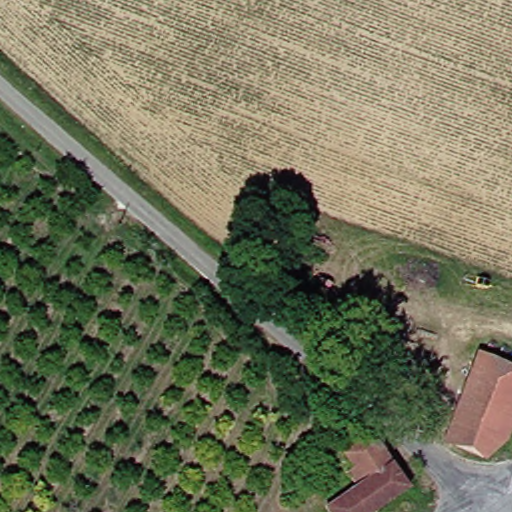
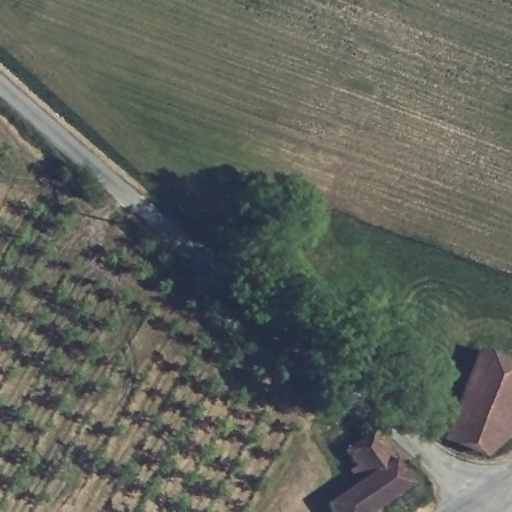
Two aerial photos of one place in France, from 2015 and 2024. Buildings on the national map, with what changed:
unchanged [(462,426),(458,438),(443,432),(458,390),(474,398),(491,350),(512,360),(512,446),(462,426)]
unchanged [(507,464),(456,447),(458,438),(462,426),(512,446),(512,452),(507,464)]
unchanged [(420,474),(384,512),(343,512),(375,473),(351,450),(362,436),(372,445),(379,440),(420,474)]

